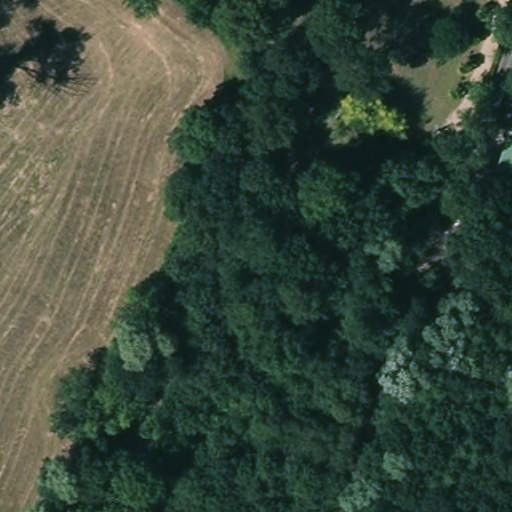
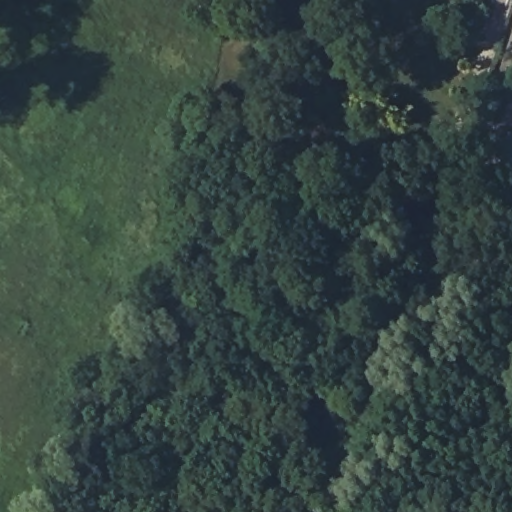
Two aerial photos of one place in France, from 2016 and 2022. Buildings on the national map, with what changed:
unchanged [(308,74),(336,86),(330,100),(302,88),(308,74)]
unchanged [(492,178),(512,124),(512,185),(492,178)]

